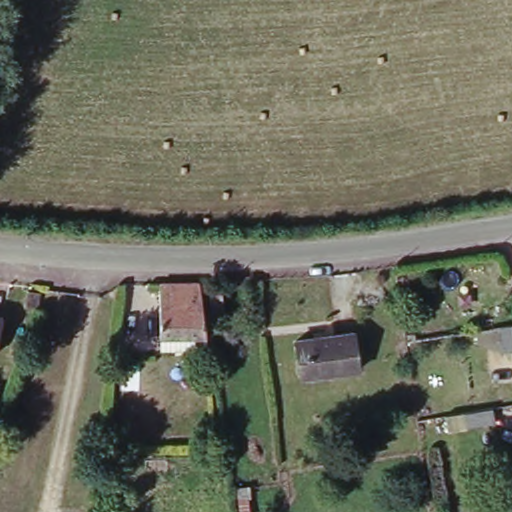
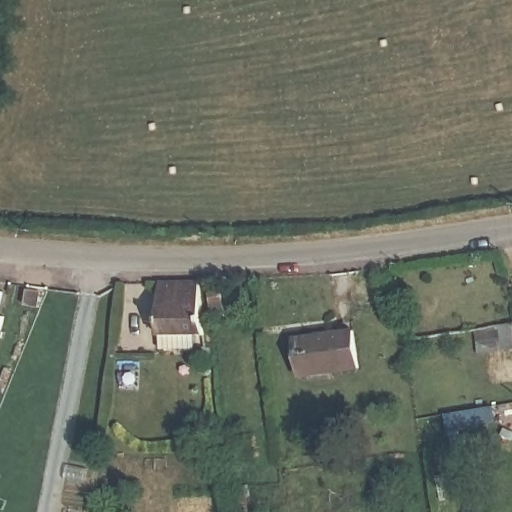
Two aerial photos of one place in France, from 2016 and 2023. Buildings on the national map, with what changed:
unchanged [(162,347),(157,280),(200,281),(206,344),(162,347)]
unchanged [(222,288),(224,304),(210,305),(209,290),(222,288)]
unchanged [(38,295),(36,309),(24,307),(25,293),(38,295)]
unchanged [(2,322),(0,329),(0,322),(2,322)]
unchanged [(496,327),(512,325),(512,351),(500,352),(496,327)]
unchanged [(359,337),(364,374),(305,383),(299,347),(359,337)]
unchanged [(493,421),(462,426),(460,413),(490,407),(493,421)]

